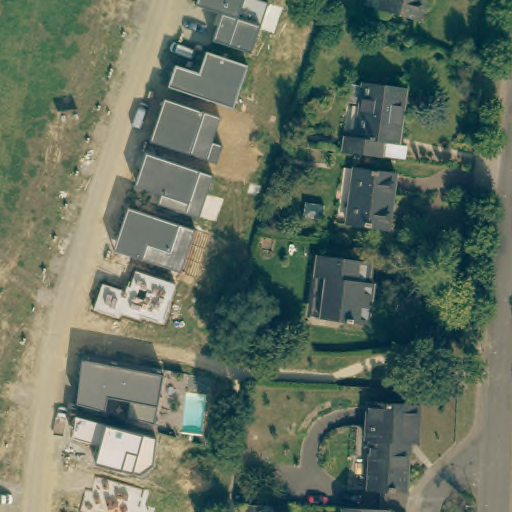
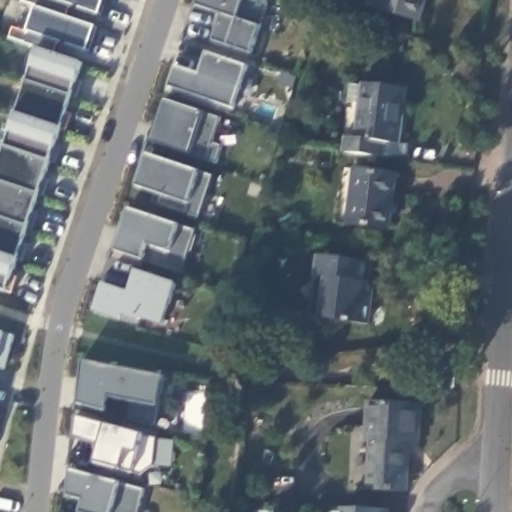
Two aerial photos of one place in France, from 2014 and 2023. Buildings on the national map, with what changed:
new [(9,39),(14,27),(28,33),(36,8),(21,2),(22,0),(105,0),(99,16),(71,7),(68,19),(95,27),(86,53),(59,43),(56,55),(84,65),(10,278),(7,290),(0,288),(0,166),(39,49),(9,39)]
unchanged [(258,0),(268,4),(260,28),(252,53),(214,40),(225,14),(199,4),(200,0),(258,0)]
unchanged [(378,13),(381,0),(426,0),(418,25),(378,13)]
unchanged [(179,66),(199,73),(208,51),(248,65),(233,108),(170,86),(179,66)]
unchanged [(344,156),(347,140),(359,142),(363,109),(350,108),(352,89),(366,90),(366,86),(411,93),(403,149),(389,147),(387,162),(344,156)]
unchanged [(165,100),(203,114),(219,118),(211,143),(221,146),(215,163),(189,154),(150,141),(165,100)]
unchanged [(148,153),(214,176),(199,219),(158,205),(160,194),(137,186),(148,153)]
unchanged [(382,233),(340,228),(348,174),(389,179),(382,233)]
unchanged [(130,209),(179,225),(197,230),(183,272),(144,259),(115,250),(130,209)]
unchanged [(365,292),(369,293),(366,324),(320,318),(325,279),(313,278),(317,255),(369,261),(365,292)]
unchanged [(103,284),(128,293),(135,271),(176,284),(163,327),(141,319),(140,321),(121,315),(120,319),(94,310),(103,284)]
new [(0,331),(13,334),(5,361),(4,368),(0,367),(0,331)]
unchanged [(455,356),(454,376),(434,374),(436,355),(455,356)]
unchanged [(85,362),(164,377),(159,406),(154,424),(129,417),(134,401),(109,396),(106,411),(79,403),(85,362)]
unchanged [(405,491),(381,489),(367,488),(369,441),(365,441),(368,402),(419,405),(417,444),(408,443),(408,448),(405,491)]
unchanged [(78,416),(108,426),(144,436),(143,439),(155,442),(153,467),(139,476),(133,473),(121,469),(98,463),(101,446),(74,438),(78,416)]
unchanged [(71,472),(119,484),(143,489),(136,512),(82,512),(84,500),(68,495),(71,472)]
unchanged [(336,511),(365,512),(336,512),(336,511)]

